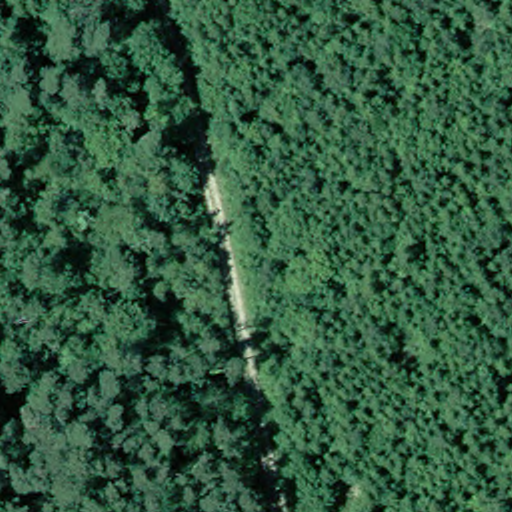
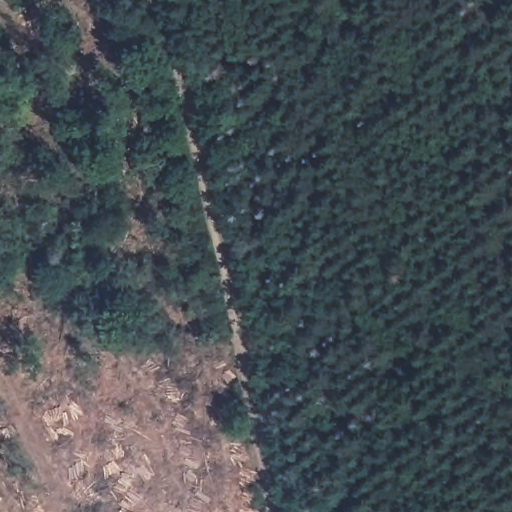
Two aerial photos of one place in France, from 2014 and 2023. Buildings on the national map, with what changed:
[]

